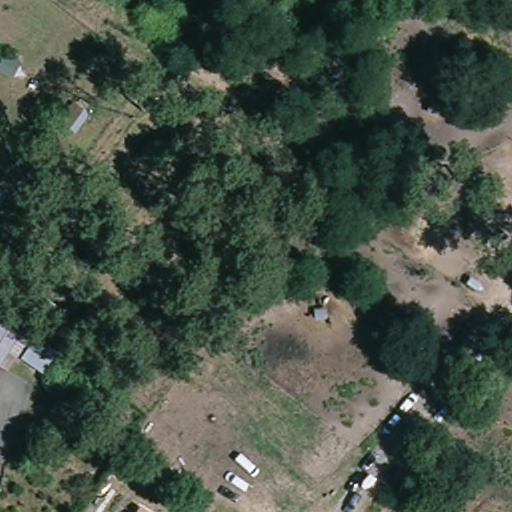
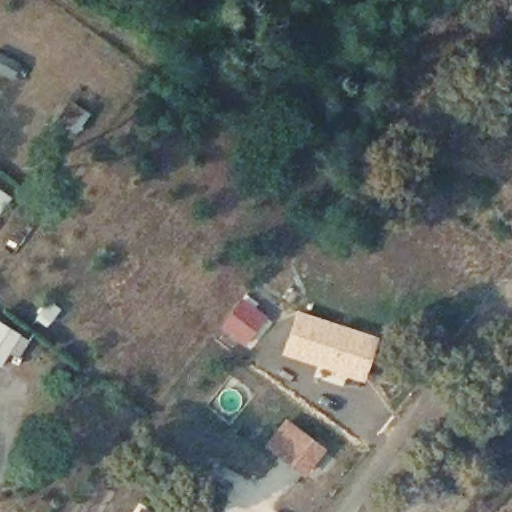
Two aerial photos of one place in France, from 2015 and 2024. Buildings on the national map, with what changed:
unchanged [(0,54),(1,55),(18,64),(11,77),(0,72),(0,54)]
unchanged [(0,210),(0,190),(10,196),(0,210)]
new [(243,293),(273,318),(250,349),(218,327),(243,293)]
new [(296,307),(379,335),(364,383),(313,376),(316,366),(280,354),(296,307)]
unchanged [(0,322),(20,334),(0,367),(0,322)]
demolished [(57,353),(42,374),(20,359),(36,337),(57,353)]
new [(264,444),(284,418),(325,446),(304,474),(264,444)]
unchanged [(137,512),(140,507),(148,512),(137,512)]

